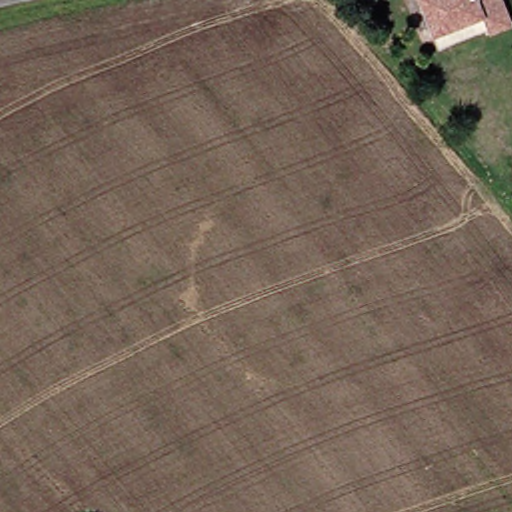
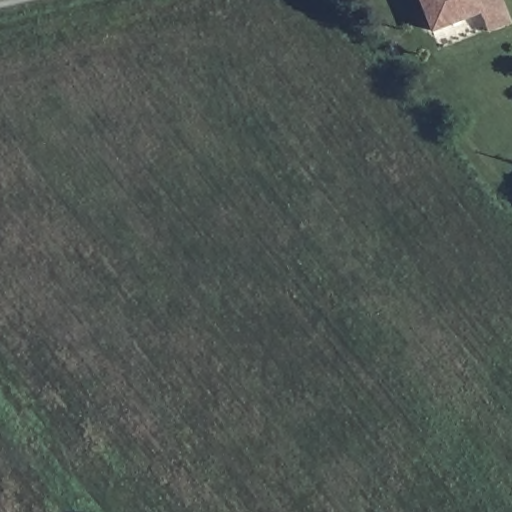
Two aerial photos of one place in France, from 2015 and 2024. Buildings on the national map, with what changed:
unchanged [(500,28),(479,38),(471,19),(420,38),(404,0),(488,0),(500,28)]

